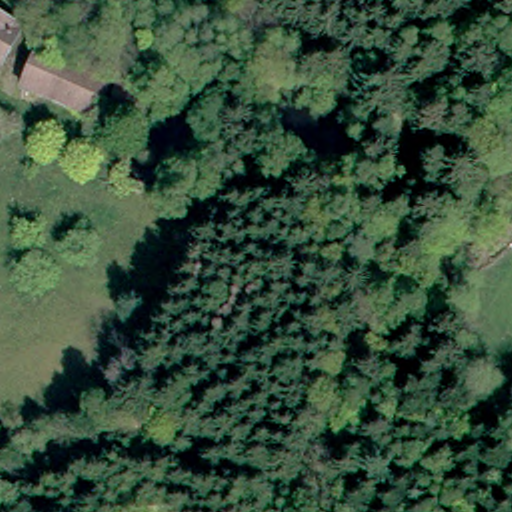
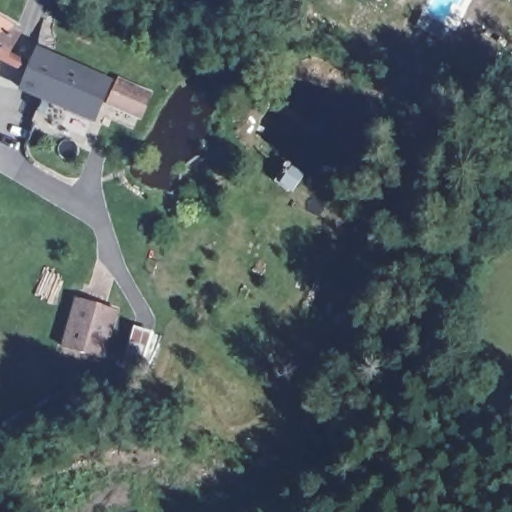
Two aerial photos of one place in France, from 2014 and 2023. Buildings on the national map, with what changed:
unchanged [(11,17),(9,20),(10,24),(14,25),(4,44),(0,42),(0,11),(11,17)]
unchanged [(113,79),(96,118),(65,105),(26,89),(41,49),(113,79)]
new [(118,80),(153,94),(142,119),(107,105),(118,80)]
new [(116,309),(102,358),(61,347),(76,297),(116,309)]

